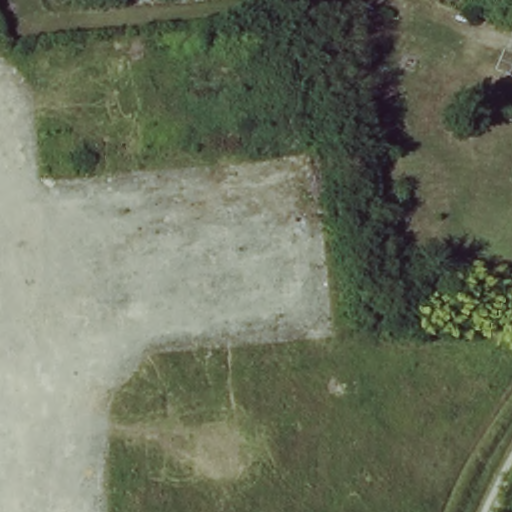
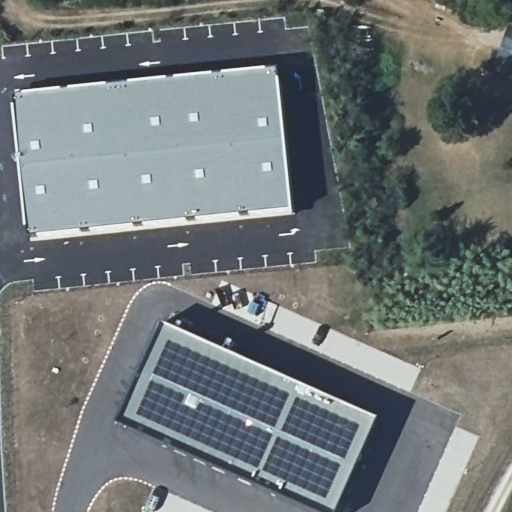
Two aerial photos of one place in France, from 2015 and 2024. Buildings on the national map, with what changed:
new [(101,87),(280,69),(296,215),(158,231),(29,243),(21,191),(16,97),(101,87)]
new [(380,420),(338,512),(328,512),(274,491),(221,464),(125,421),(166,326),(380,420)]

